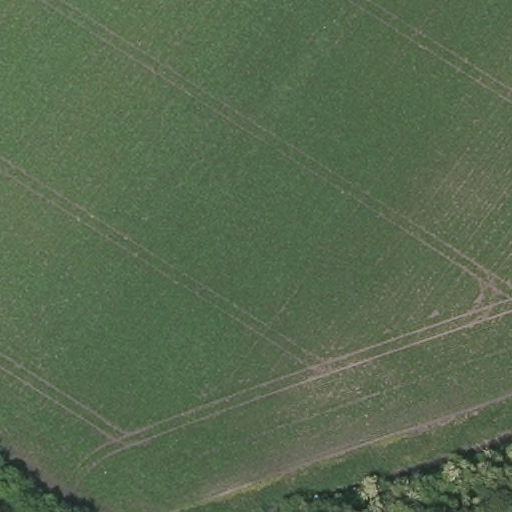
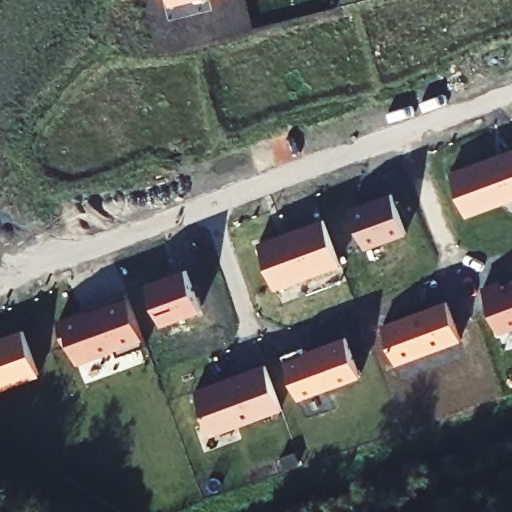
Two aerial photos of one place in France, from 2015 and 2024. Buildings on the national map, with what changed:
new [(171,5),(170,0),(193,0),(171,5)]
new [(467,215),(450,170),(512,147),(512,199),(467,215)]
new [(407,234),(365,247),(350,209),(392,192),(407,234)]
new [(341,264),(276,289),(259,241),(326,217),(341,264)]
new [(202,310),(163,325),(147,282),(188,268),(202,310)]
new [(501,333),(484,286),(503,278),(505,283),(512,280),(512,329),(501,333)]
new [(148,344),(121,354),(118,347),(78,365),(57,320),(129,293),(148,344)]
new [(461,341),(397,364),(381,323),(448,300),(461,341)]
new [(0,390),(0,337),(24,328),(42,375),(0,390)]
new [(362,376),(300,400),(284,359),(347,335),(362,376)]
new [(282,410),(212,436),(196,388),(267,362),(282,410)]

